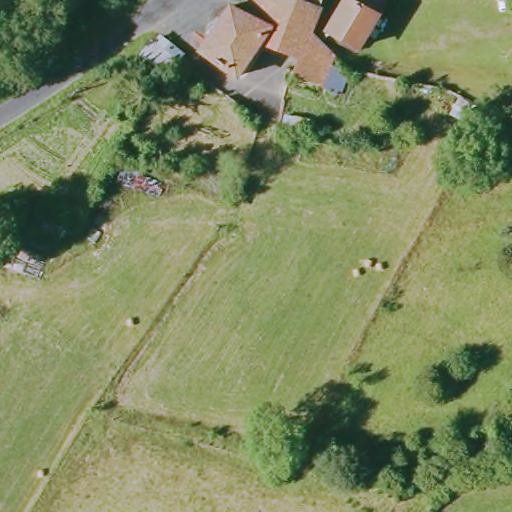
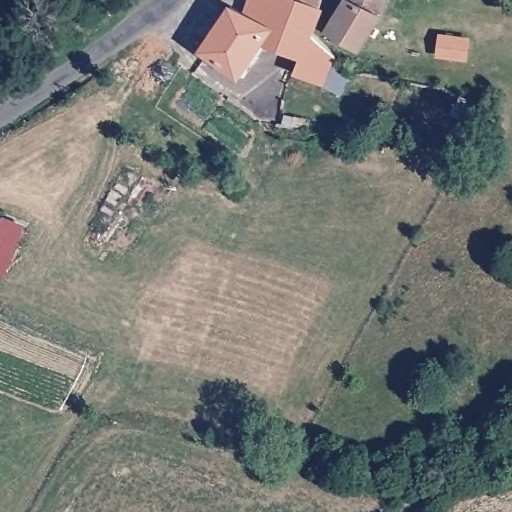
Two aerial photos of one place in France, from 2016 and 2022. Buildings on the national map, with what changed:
unchanged [(315,31),(340,59),(326,90),(292,77),(299,59),(265,43),(241,81),(200,52),(205,46),(197,41),(216,17),(222,21),(234,3),(250,13),(252,0),(327,0),(325,7),(315,31)]
unchanged [(362,53),(325,35),(346,0),(390,0),(383,16),(362,53)]
new [(0,275),(0,225),(3,217),(25,227),(5,277),(0,275)]

